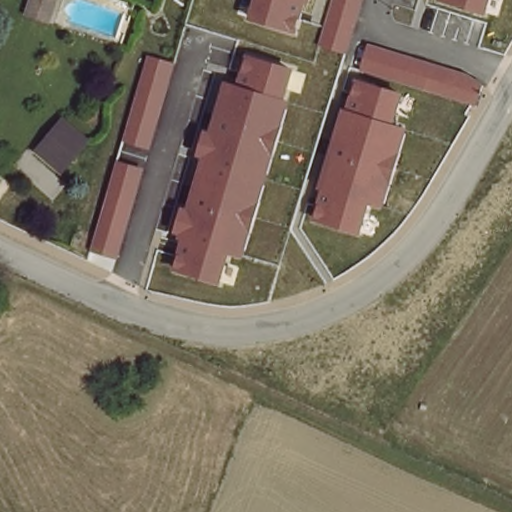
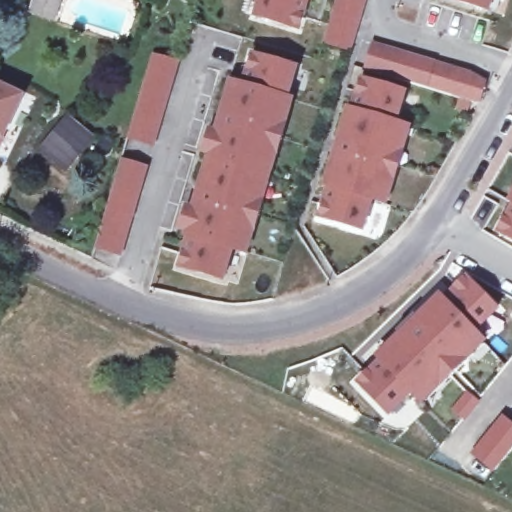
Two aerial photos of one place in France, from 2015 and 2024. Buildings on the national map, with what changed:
unchanged [(26,7),(28,0),(60,0),(55,15),(26,7)]
unchanged [(302,35),(251,20),(258,0),(312,0),(302,35)]
unchanged [(334,0),(366,0),(351,53),(320,45),(334,0)]
unchanged [(489,14),(449,0),(493,0),(489,14)]
unchanged [(372,40),(490,78),(481,104),(363,67),(372,40)]
unchanged [(297,67),(288,97),(295,100),(248,256),(234,251),(225,282),(201,277),(175,269),(185,236),(175,232),(183,203),(190,205),(205,157),(200,155),(208,125),(214,128),(228,78),(242,82),(249,53),(297,67)]
unchanged [(180,63),(155,150),(125,141),(152,55),(180,63)]
unchanged [(409,93),(398,122),(410,127),(387,205),(374,202),(365,232),(315,219),(325,190),(321,188),(345,107),(350,108),(358,77),(409,93)]
new [(3,141),(0,148),(0,84),(25,95),(3,141)]
unchanged [(58,167),(32,145),(62,112),(85,131),(58,167)]
unchanged [(148,167),(123,259),(95,251),(123,159),(148,167)]
new [(505,234),(512,222),(512,239),(505,234)]
new [(441,386),(425,402),(418,396),(395,418),(364,386),(387,364),(383,360),(405,338),(402,335),(420,317),(423,321),(445,300),(449,303),(472,281),(503,313),(480,335),(486,342),(469,358),(475,363),(463,375),(458,381),(447,392),(437,382),(441,386)]
new [(460,413),(472,398),(482,406),(470,421),(460,413)]
new [(512,424),(512,461),(500,474),(480,457),(508,421),(512,424)]

